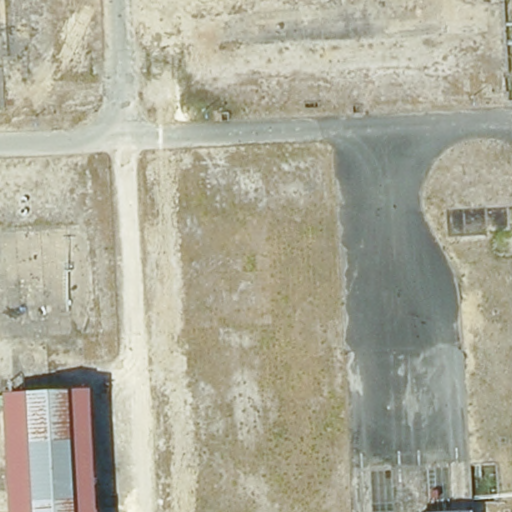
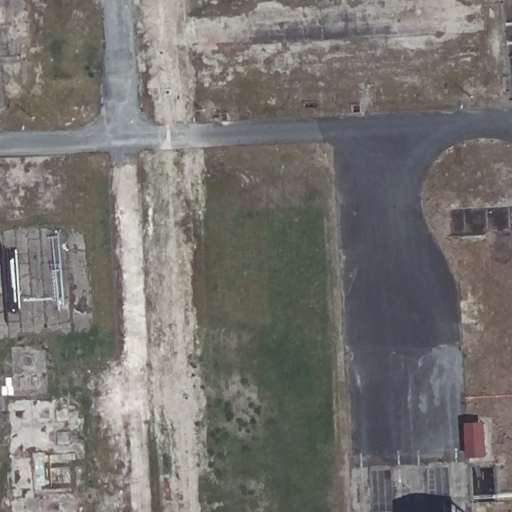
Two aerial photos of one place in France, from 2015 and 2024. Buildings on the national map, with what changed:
demolished [(68,500),(69,512),(0,512),(0,381),(64,378),(68,500)]
demolished [(129,512),(69,512),(68,500),(127,496),(129,512)]

